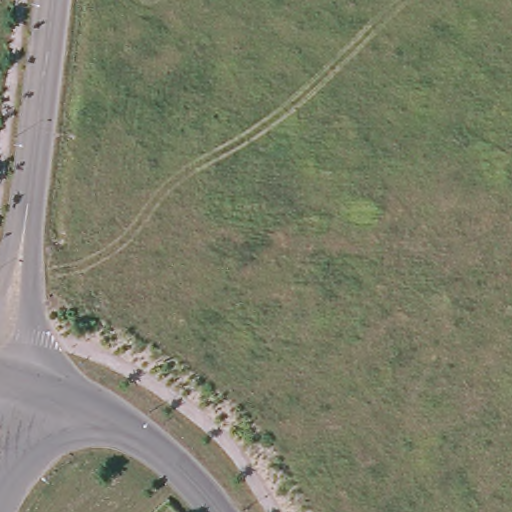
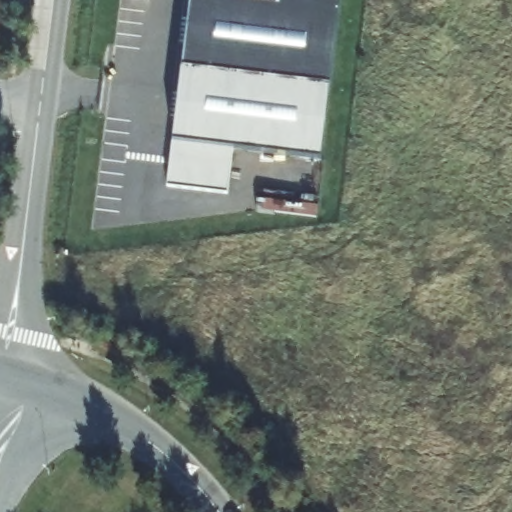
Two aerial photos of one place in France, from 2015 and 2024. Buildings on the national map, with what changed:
new [(191,0),(224,0),(281,7),(282,0),(340,0),(321,160),(232,150),(227,195),(166,187),(191,0)]

